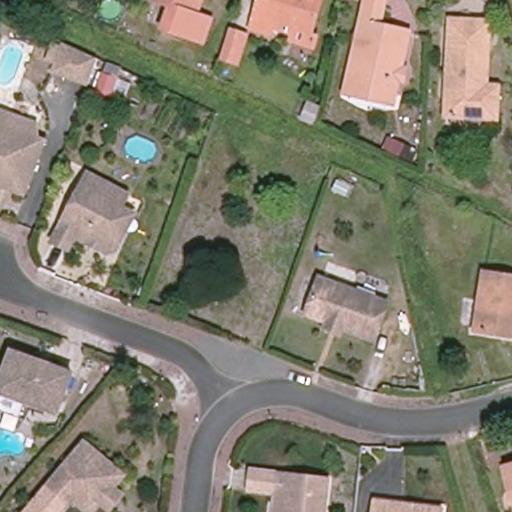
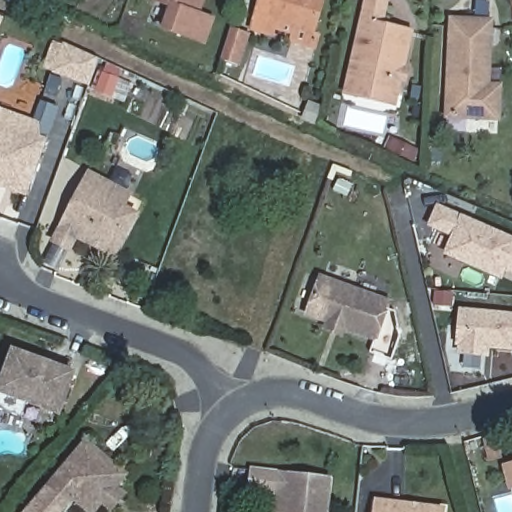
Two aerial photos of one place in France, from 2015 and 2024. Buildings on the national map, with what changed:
unchanged [(194,13),(212,19),(204,42),(163,27),(171,5),(158,0),(198,0),(194,13)]
unchanged [(316,32),(313,42),(292,35),(293,29),(273,23),(271,29),(252,23),(258,0),(320,0),(311,30),(316,32)]
unchanged [(394,103),(345,92),(366,0),(383,0),(386,1),(380,25),(410,32),(394,103)]
unchanged [(488,84),(499,86),(498,118),(446,116),(451,20),(490,21),(488,84)]
unchanged [(88,86),(53,72),(64,43),(98,59),(88,86)]
unchanged [(314,120),(291,110),(293,104),(305,109),(308,104),(319,109),(314,120)]
unchanged [(6,189),(0,186),(0,109),(38,123),(33,135),(45,140),(28,187),(25,196),(6,189)]
unchanged [(411,162),(393,154),(399,143),(416,151),(411,162)]
unchanged [(76,236),(69,249),(54,241),(88,174),(128,195),(121,208),(134,215),(123,238),(116,250),(108,253),(99,248),(93,245),(76,236)]
unchanged [(347,197),(332,190),(337,180),(351,186),(347,197)]
new [(512,282),(442,255),(449,237),(429,227),(439,205),(512,237),(512,282)]
demolished [(483,272),(512,277),(512,337),(475,331),(483,272)]
unchanged [(324,329),(327,322),(308,315),(321,278),(388,302),(375,339),(344,328),(341,335),(324,329)]
new [(489,358),(480,357),(479,369),(463,367),(464,356),(454,355),(459,308),(512,313),(512,354),(491,352),(489,358)]
unchanged [(0,403),(0,394),(3,386),(18,346),(78,368),(63,408),(33,397),(27,413),(0,403)]
unchanged [(507,464),(496,467),(488,440),(500,436),(507,464)]
unchanged [(85,442),(125,474),(115,487),(124,494),(111,510),(109,512),(25,512),(52,481),(85,442)]
unchanged [(512,466),(512,479),(509,467),(512,466)]
unchanged [(279,475),(287,476),(328,481),(325,512),(275,512),(277,494),(279,475)]
unchanged [(374,512),(376,502),(441,509),(441,512),(374,512)]

